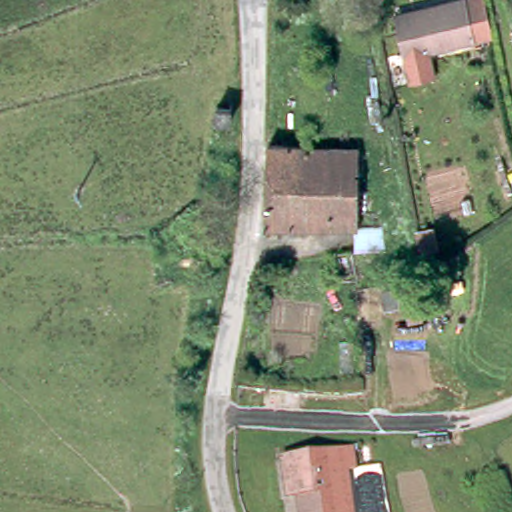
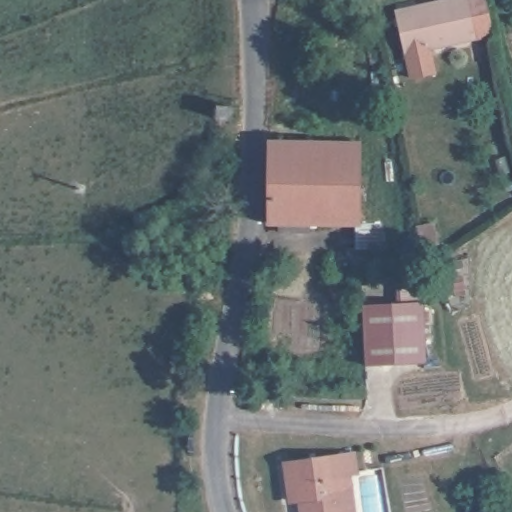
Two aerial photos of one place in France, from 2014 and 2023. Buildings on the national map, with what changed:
unchanged [(472,0),(478,29),(478,30),(389,47),(381,9),(403,5),(402,0),(472,0)]
unchanged [(339,242),(352,240),(353,216),(308,216),(308,224),(280,225),(280,216),(268,216),(268,134),(360,137),(360,216),(383,214),(387,238),(354,243),(357,262),(343,264),(339,242)]
new [(362,305),(424,302),(427,363),(364,366),(362,305)]
unchanged [(291,480),(287,455),(338,447),(349,446),(353,446),(355,466),(351,466),(340,467),(346,512),(306,512),(303,492),(293,493),(291,480)]

